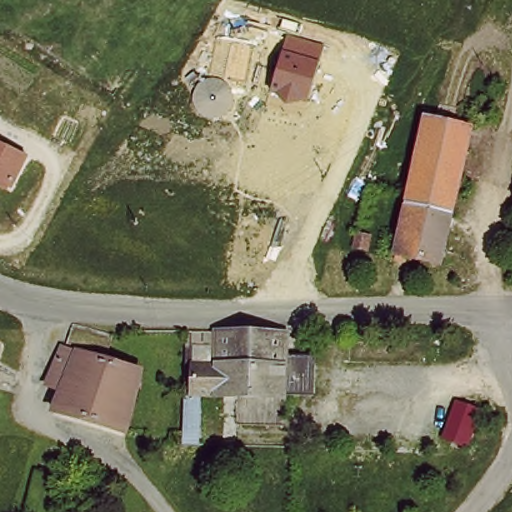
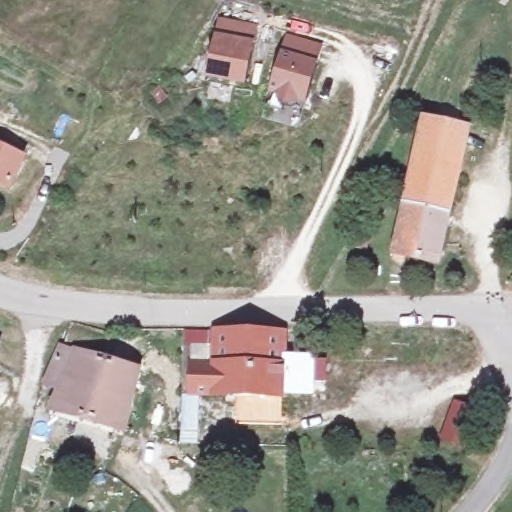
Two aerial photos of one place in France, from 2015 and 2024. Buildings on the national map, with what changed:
new [(218,17),(258,25),(254,41),(246,85),(206,79),(214,33),(218,17)]
unchanged [(322,44),(306,103),(302,101),(286,105),(276,94),(270,92),(287,34),(322,44)]
unchanged [(459,129),(467,131),(435,263),(392,252),(424,121),(432,123),(436,105),(463,113),(459,129)]
unchanged [(4,149),(28,161),(14,193),(0,186),(0,148),(4,149)]
unchanged [(286,328),(286,349),(312,350),(313,393),(287,393),(285,404),(269,404),(272,342),(207,339),(207,327),(286,328)]
unchanged [(107,363),(142,375),(125,437),(60,414),(68,392),(54,387),(77,329),(112,335),(107,363)]
unchanged [(207,339),(272,342),(269,404),(209,402),(182,401),(185,351),(206,351),(207,339)]
unchanged [(209,402),(206,448),(180,445),(182,401),(209,402)]

